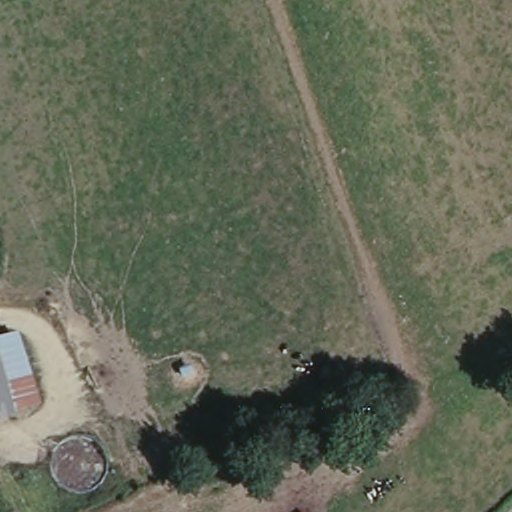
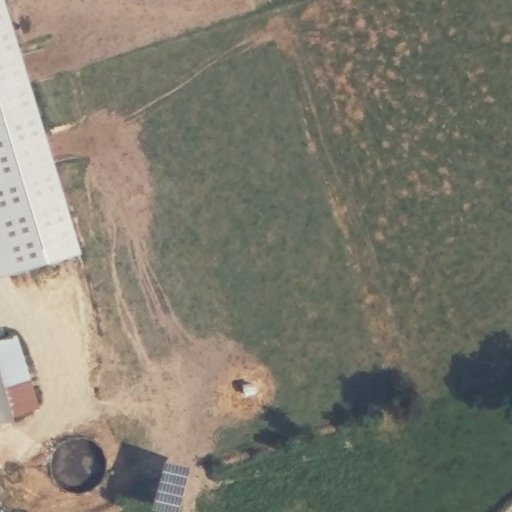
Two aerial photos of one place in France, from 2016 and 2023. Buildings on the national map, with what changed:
new [(34,93),(82,252),(0,277),(0,0),(29,94),(34,93)]
unchanged [(0,338),(21,332),(44,404),(16,412),(0,358),(0,338)]
unchanged [(0,417),(0,358),(16,412),(0,417)]

